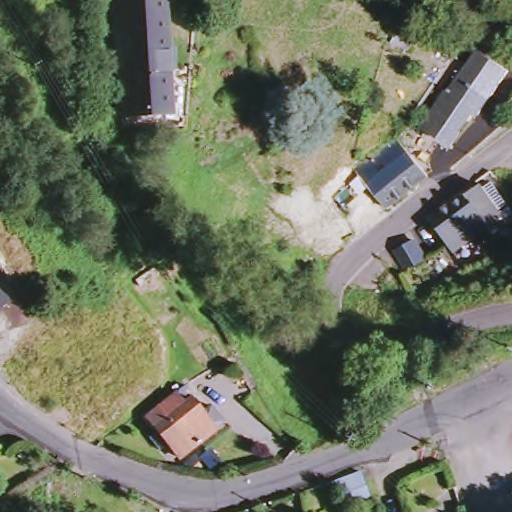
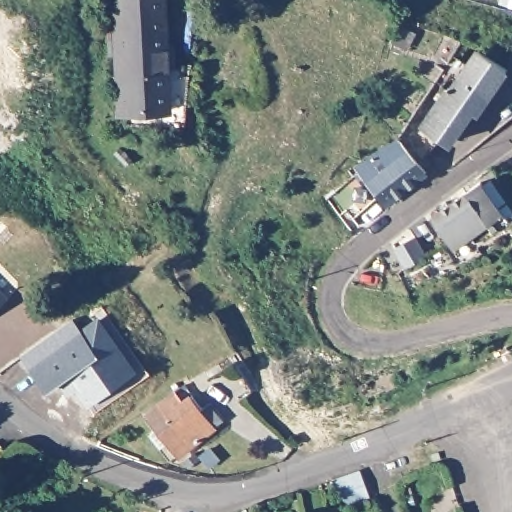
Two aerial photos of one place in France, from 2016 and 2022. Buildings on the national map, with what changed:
unchanged [(166,0),(171,110),(132,112),(125,2),(157,0),(166,0)]
unchanged [(480,114),(475,111),(451,92),(480,52),(510,72),(480,114)]
unchanged [(412,71),(415,62),(437,67),(433,77),(412,71)]
unchanged [(475,111),(450,146),(438,137),(428,152),(417,139),(451,92),(475,111)]
unchanged [(397,144),(427,180),(389,212),(357,176),(397,144)]
unchanged [(512,205),(512,218),(472,246),(449,215),(496,181),(512,205)]
unchanged [(460,242),(476,263),(454,277),(442,255),(460,242)]
new [(0,305),(0,287),(9,295),(0,305)]
new [(75,392),(70,397),(60,384),(47,393),(22,358),(73,319),(82,330),(99,317),(140,371),(87,410),(75,392)]
unchanged [(193,424),(200,421),(211,437),(206,442),(207,443),(182,461),(178,453),(172,458),(165,448),(170,443),(152,417),(176,402),(193,424)]
unchanged [(366,500),(339,510),(328,481),(356,471),(365,497),(366,500)]

